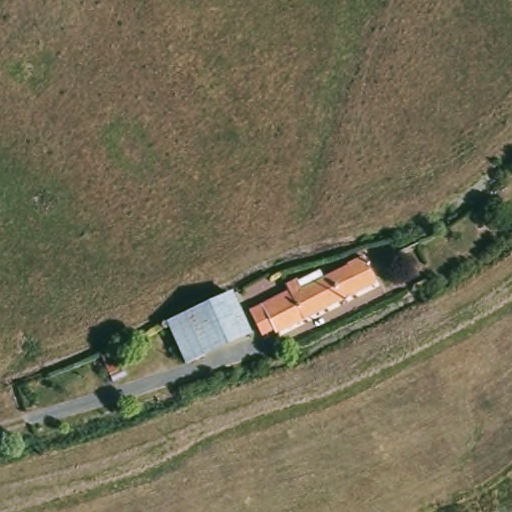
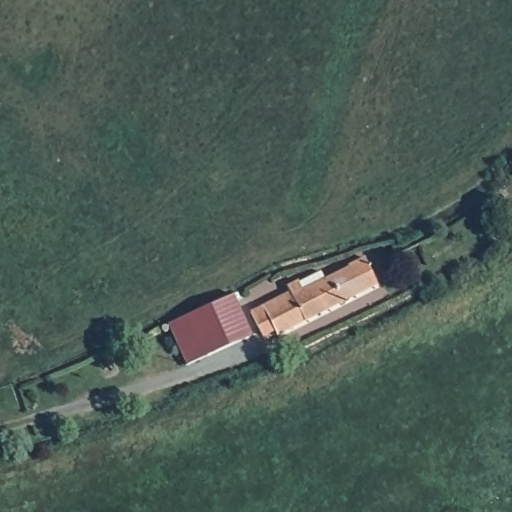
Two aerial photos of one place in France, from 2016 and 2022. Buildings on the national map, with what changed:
unchanged [(305,293),(365,261),(377,287),(284,331),(282,326),(272,330),(263,310),(290,295),(286,288),(296,281),(305,293)]
unchanged [(253,332),(191,365),(171,326),(183,320),(233,295),(253,332)]
unchanged [(138,375),(110,389),(96,360),(101,358),(126,348),(138,375)]

